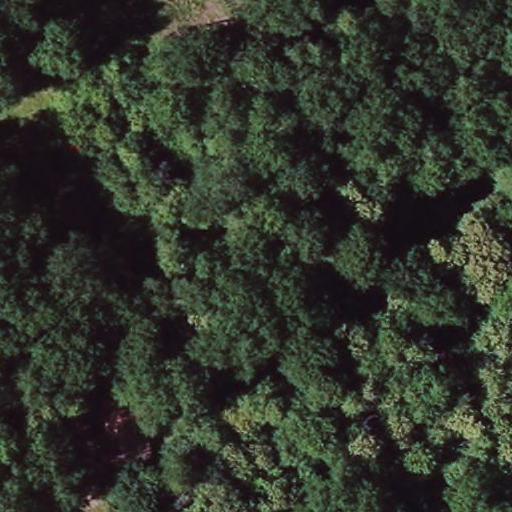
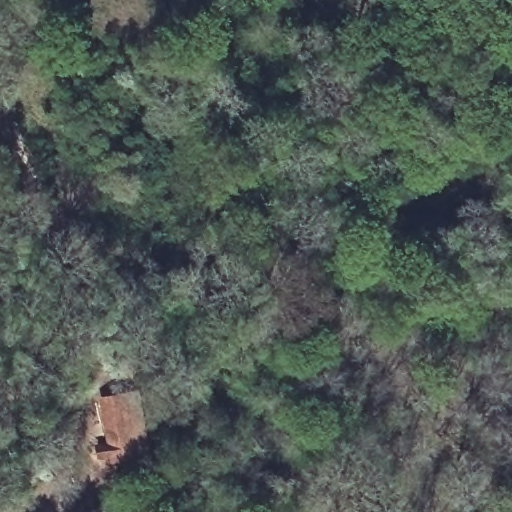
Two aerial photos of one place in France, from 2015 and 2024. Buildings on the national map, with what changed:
new [(98,398),(136,390),(152,467),(111,476),(107,457),(97,460),(94,443),(105,442),(98,398)]

